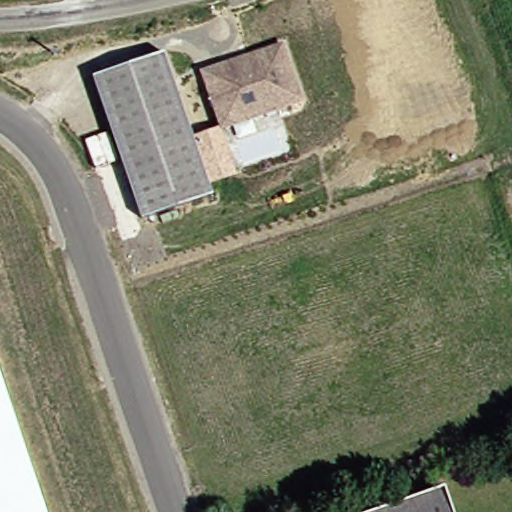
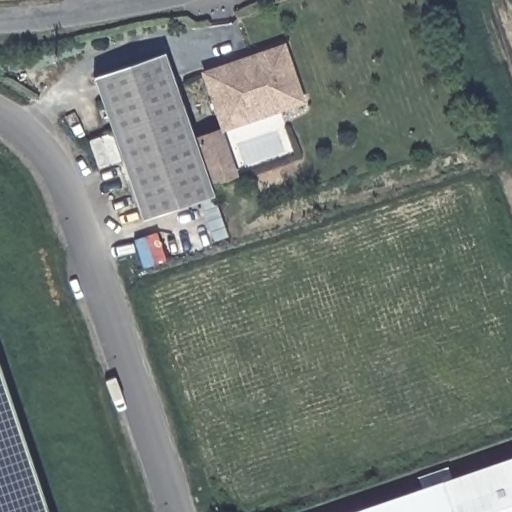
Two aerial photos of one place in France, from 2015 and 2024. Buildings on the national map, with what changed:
unchanged [(288,42),(306,98),(226,125),(208,69),(288,42)]
unchanged [(169,47),(216,191),(145,215),(98,71),(169,47)]
unchanged [(0,512),(0,349),(53,512),(0,512)]
new [(456,512),(448,486),(512,465),(512,512),(456,512)]
unchanged [(456,512),(370,512),(448,486),(456,512)]

